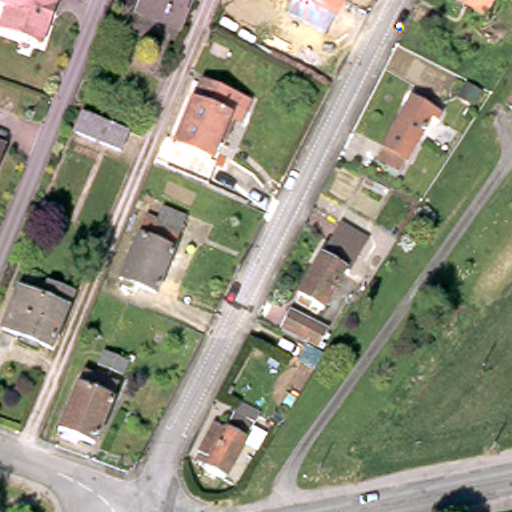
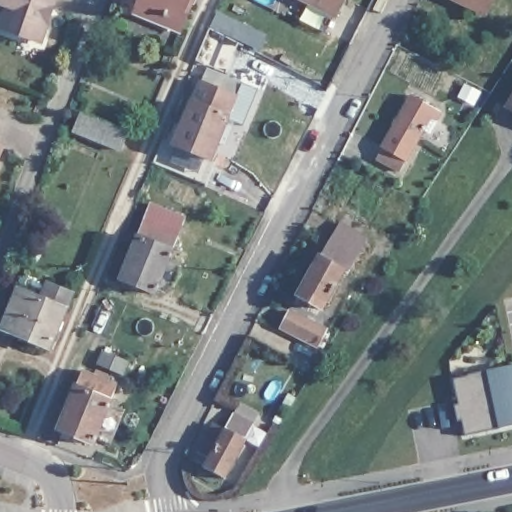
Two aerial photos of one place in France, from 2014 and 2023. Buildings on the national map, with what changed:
unchanged [(0,26),(7,8),(4,5),(3,0),(57,0),(43,38),(36,43),(32,41),(5,31),(0,29),(0,26)]
unchanged [(131,8),(134,0),(187,0),(178,21),(176,26),(157,18),(131,8)]
unchanged [(343,0),(333,20),(294,0),(343,0)]
unchanged [(449,0),(488,0),(479,15),(449,0)]
unchanged [(283,33),(278,42),(268,38),(273,28),(283,33)]
unchanged [(209,180),(204,177),(166,162),(199,79),(236,94),(248,98),(239,120),(233,117),(224,139),(218,137),(211,159),(216,161),(209,180)]
unchanged [(404,108),(401,106),(407,94),(413,98),(410,102),(437,118),(433,125),(427,122),(395,177),(373,164),(404,108)]
unchanged [(511,106),(512,104),(512,107),(511,106)]
unchanged [(81,113),(128,132),(119,151),(73,133),(81,113)]
unchanged [(0,156),(0,147),(3,148),(0,156)]
unchanged [(120,285),(123,278),(119,277),(144,213),(157,218),(163,205),(186,214),(178,233),(155,292),(133,283),(131,288),(120,285)]
unchanged [(365,241),(355,258),(350,255),(320,307),(308,299),(304,307),(293,301),(336,225),(365,241)]
unchanged [(51,343),(5,324),(20,285),(44,295),(51,280),(73,289),(51,343)]
unchanged [(320,328),(310,345),(278,327),(289,310),(320,328)]
unchanged [(131,349),(121,374),(96,364),(106,339),(131,349)]
new [(454,379),(512,366),(512,426),(466,435),(462,419),(457,420),(454,405),(459,404),(454,379)]
unchanged [(94,375),(97,367),(108,372),(105,379),(116,384),(93,443),(58,429),(81,370),(94,375)]
unchanged [(204,447),(201,446),(223,406),(241,416),(244,411),(254,416),(251,422),(258,426),(227,480),(205,468),(208,464),(198,458),(204,447)]

